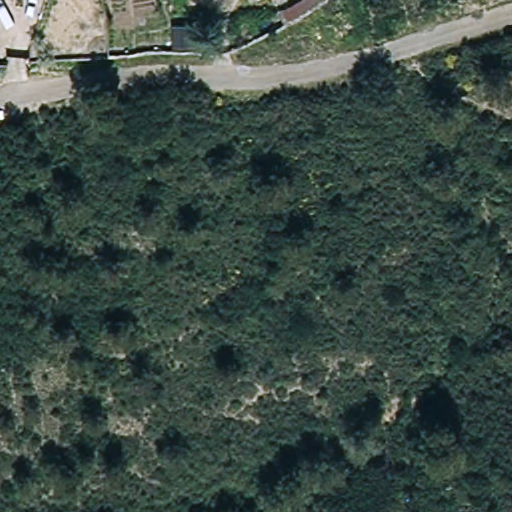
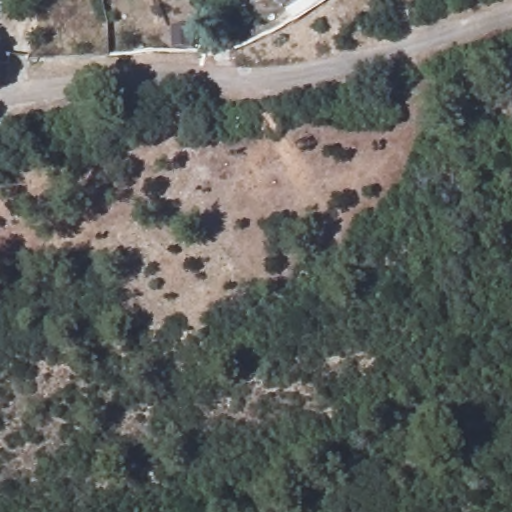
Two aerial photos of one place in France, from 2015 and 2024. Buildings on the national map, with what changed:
unchanged [(149,34),(169,34),(169,49),(150,49),(149,34)]

